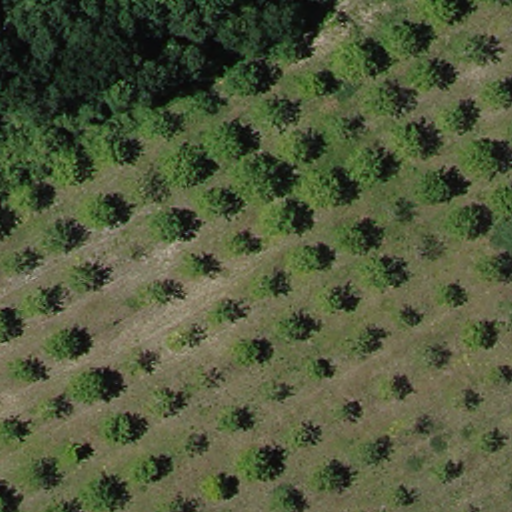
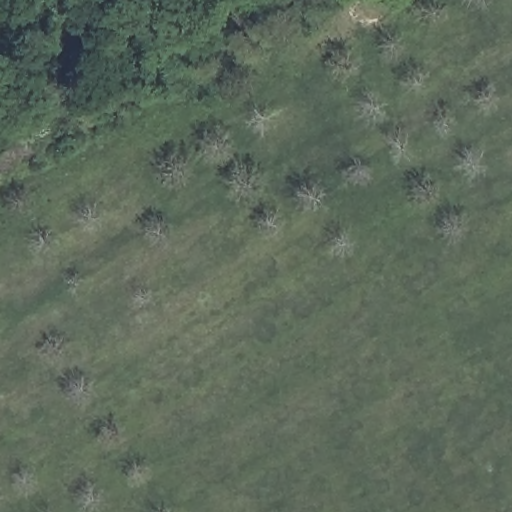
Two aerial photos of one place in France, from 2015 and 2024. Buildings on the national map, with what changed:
[]

